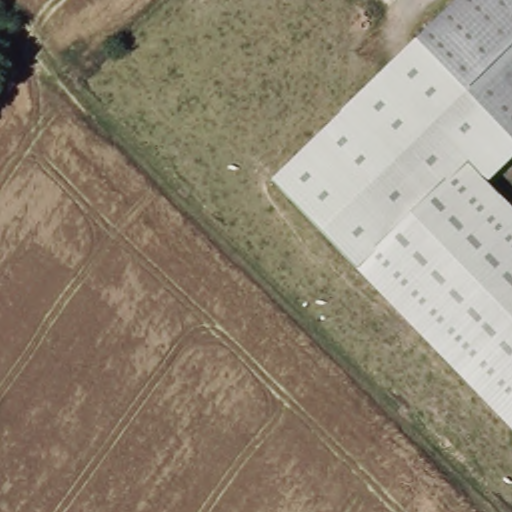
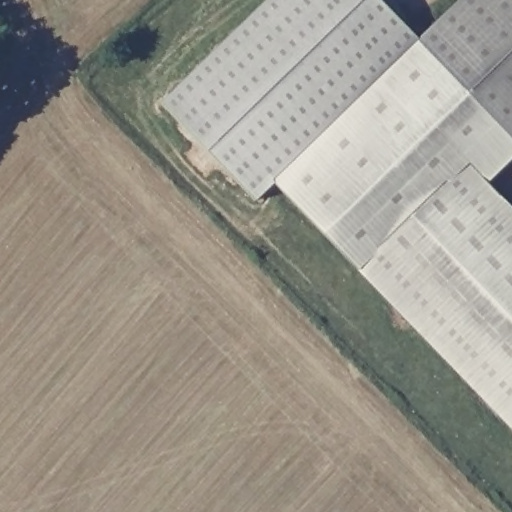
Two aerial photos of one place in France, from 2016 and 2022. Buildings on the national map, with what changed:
new [(419,38),(417,41),(273,180),(276,184),(257,201),(162,103),(268,0),(381,0),(419,38)]
unchanged [(431,27),(459,0),(512,0),(512,139),(417,41),(431,27)]
unchanged [(512,139),(512,156),(486,182),(512,209),(512,431),(273,180),(417,41),(444,69),(512,139)]

